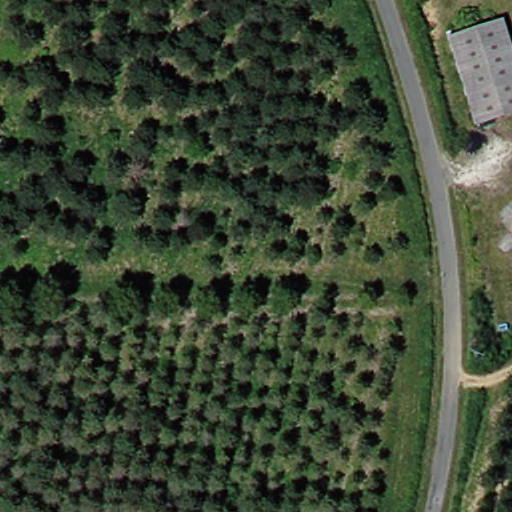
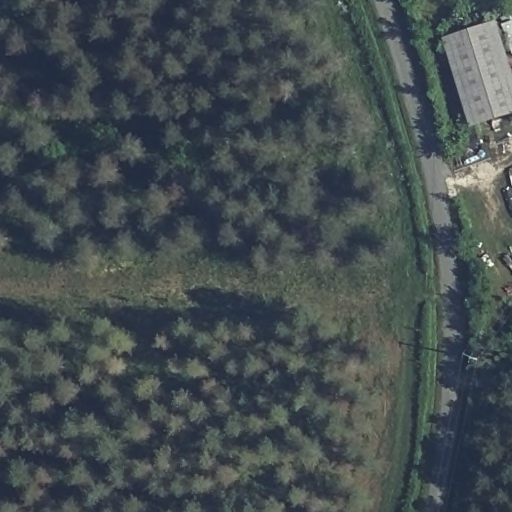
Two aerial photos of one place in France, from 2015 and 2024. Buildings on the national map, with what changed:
unchanged [(447,39),(499,21),(512,59),(512,113),(477,124),(447,39)]

